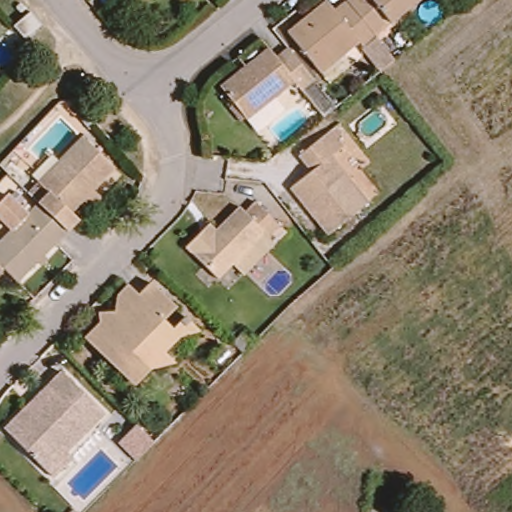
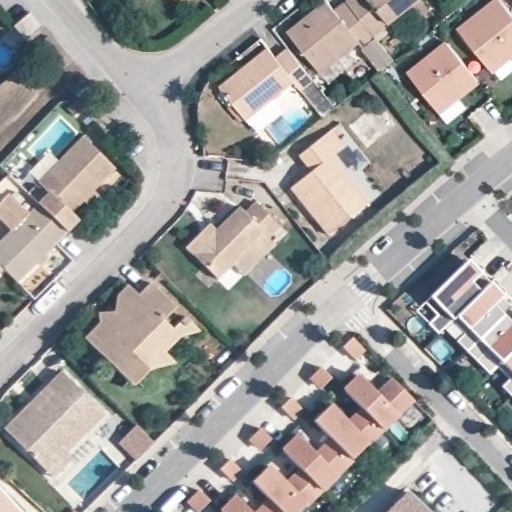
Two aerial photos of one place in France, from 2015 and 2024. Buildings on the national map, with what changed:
unchanged [(172,0),(176,0),(174,1),(172,0)]
unchanged [(336,79),(329,71),(325,73),(292,31),(331,0),(332,0),(340,8),(351,0),(353,0),(380,35),(381,37),(385,41),(371,52),(368,48),(364,42),(345,58),(352,66),(336,79)]
unchanged [(380,35),(353,0),(424,0),(380,35)]
new [(512,15),(512,58),(493,73),(461,33),(501,1),(512,15)]
unchanged [(30,12),(42,27),(26,40),(14,26),(30,12)]
unchanged [(306,89),(300,82),(252,119),(226,87),(251,66),(245,58),(268,40),(274,48),(280,57),(293,47),(319,79),(306,89)]
new [(447,43),(478,81),(438,113),(408,75),(447,43)]
unchanged [(387,70),(385,71),(372,55),(387,44),(399,60),(387,70)]
unchanged [(340,107),(329,116),(310,92),(322,84),(340,107)]
unchanged [(96,123),(89,130),(69,107),(77,101),(96,123)]
unchanged [(349,140),(338,150),(374,195),(333,229),(295,183),(316,166),(304,152),(337,125),(349,140)]
unchanged [(91,207),(85,200),(71,214),(79,222),(68,233),(67,231),(37,202),(47,191),(37,181),(82,137),(114,168),(94,191),(101,198),(91,207)]
unchanged [(223,268),(190,236),(206,221),(214,213),(220,219),(244,195),(249,201),(259,190),(291,222),(279,232),(234,279),(223,268)]
unchanged [(17,282),(4,268),(0,264),(0,239),(9,230),(0,221),(0,200),(7,194),(20,208),(25,203),(31,209),(37,202),(67,231),(17,282)]
new [(429,295),(469,256),(505,292),(502,295),(512,305),(512,393),(503,384),(510,377),(485,351),(477,359),(457,339),(465,331),(453,319),(438,333),(428,322),(442,308),(429,295)]
unchanged [(4,268),(0,272),(0,264),(4,268)]
unchanged [(173,314),(182,322),(190,315),(195,311),(200,316),(210,326),(191,332),(175,348),(185,358),(157,367),(142,381),(94,331),(109,316),(108,306),(124,305),(126,290),(137,279),(147,289),(160,276),(186,302),(173,314)]
unchanged [(180,281),(209,311),(205,315),(175,285),(180,281)]
unchanged [(240,328),(254,342),(243,353),(229,339),(240,328)]
new [(352,337),(363,348),(354,358),(342,346),(352,337)]
new [(332,377),(323,386),(312,375),(321,366),(332,377)]
new [(301,512),(252,512),(268,497),(252,482),(269,465),(286,481),(299,468),(282,450),(298,434),(316,451),(329,436),(314,422),(332,403),(348,420),(362,407),(344,389),(357,375),(376,393),(390,377),(412,401),(399,418),(301,512)]
unchanged [(99,420),(63,457),(67,463),(48,481),(0,433),(0,432),(24,409),(36,397),(56,376),(99,420)]
new [(302,408),(293,417),(282,406),(291,397),(302,408)]
new [(138,425),(154,441),(136,459),(120,443),(138,425)]
new [(271,438),(262,448),(251,437),(261,427),(271,438)]
new [(241,469),(232,479),(221,468),(230,458),(241,469)]
new [(0,512),(0,489),(23,512),(0,512)]
new [(210,500),(201,509),(190,498),(199,489),(210,500)]
new [(386,512),(407,492),(429,512),(386,512)]
new [(234,496),(251,512),(220,512),(220,511),(234,496)]
unchanged [(78,512),(70,512),(75,508),(78,512)]

